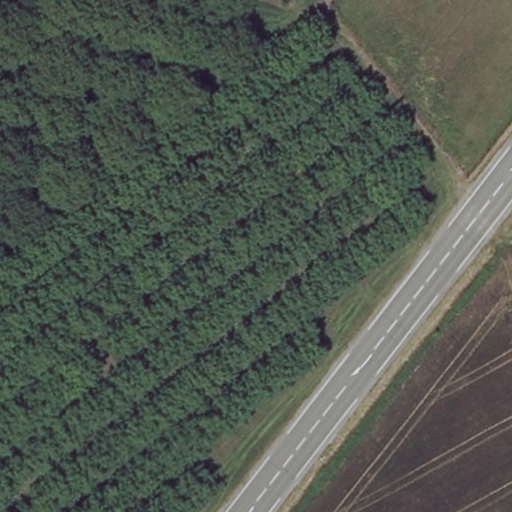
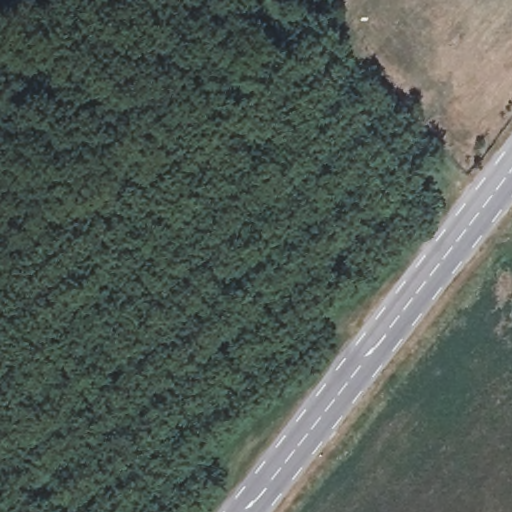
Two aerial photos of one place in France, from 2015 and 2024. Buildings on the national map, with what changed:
[]

